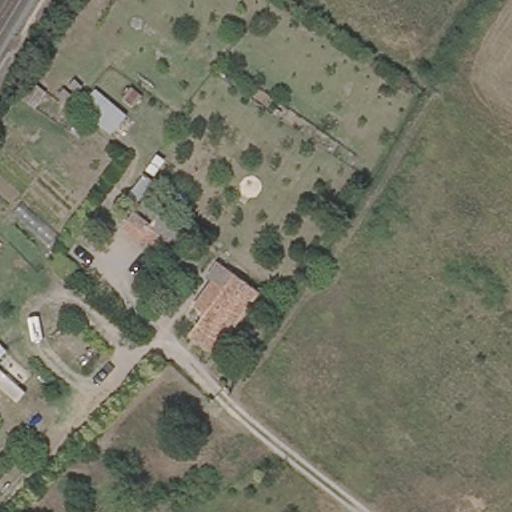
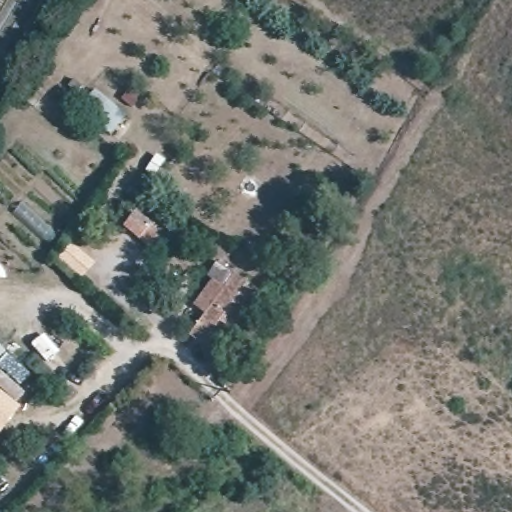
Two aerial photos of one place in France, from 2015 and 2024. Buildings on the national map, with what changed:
unchanged [(102,91),(127,110),(109,132),(85,111),(102,91)]
unchanged [(132,207),(143,195),(180,224),(157,254),(134,238),(118,223),(132,207)]
unchanged [(192,331),(235,274),(257,291),(214,346),(192,331)]
new [(22,407),(0,435),(0,390),(22,407)]

